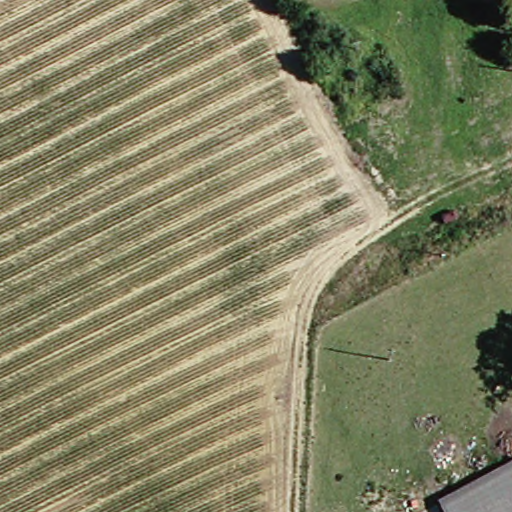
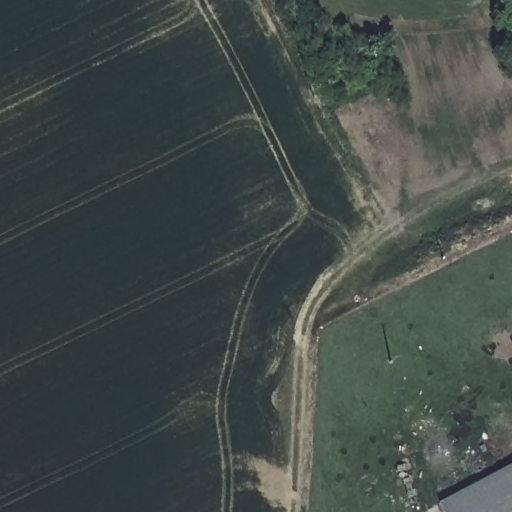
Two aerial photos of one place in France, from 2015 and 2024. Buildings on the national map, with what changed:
unchanged [(512,468),(512,512),(453,512),(447,501),(512,468)]

